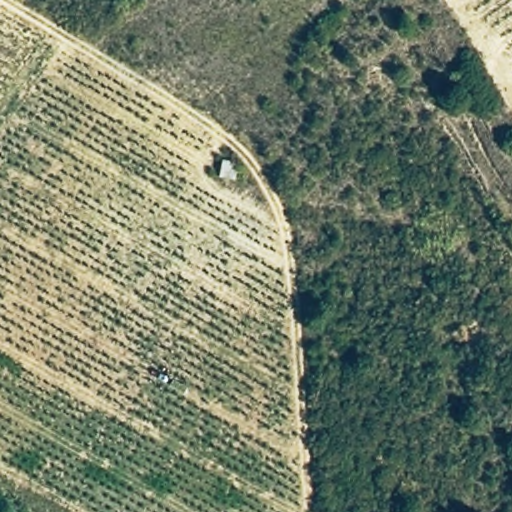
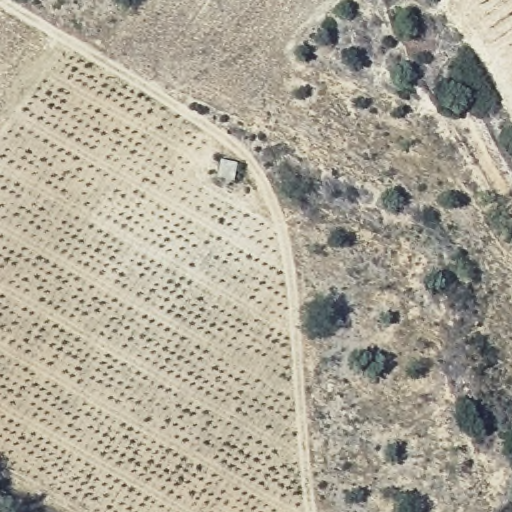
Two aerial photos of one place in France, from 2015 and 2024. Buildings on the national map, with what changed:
unchanged [(240,165),(238,179),(216,175),(219,156),(240,165)]

